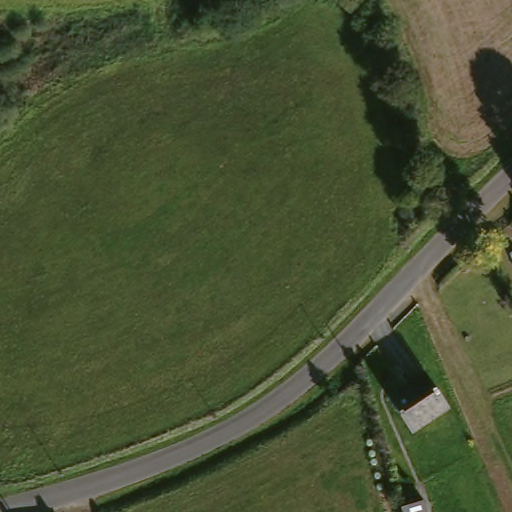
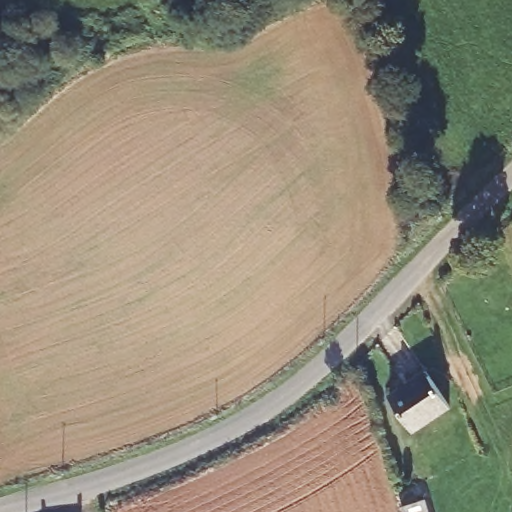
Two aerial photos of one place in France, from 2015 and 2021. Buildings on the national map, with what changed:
unchanged [(405,433),(380,400),(416,372),(441,406),(405,433)]
unchanged [(421,503),(423,512),(396,512),(395,510),(421,503)]

